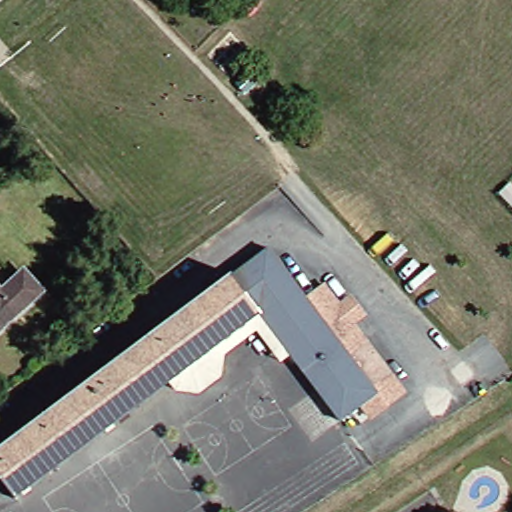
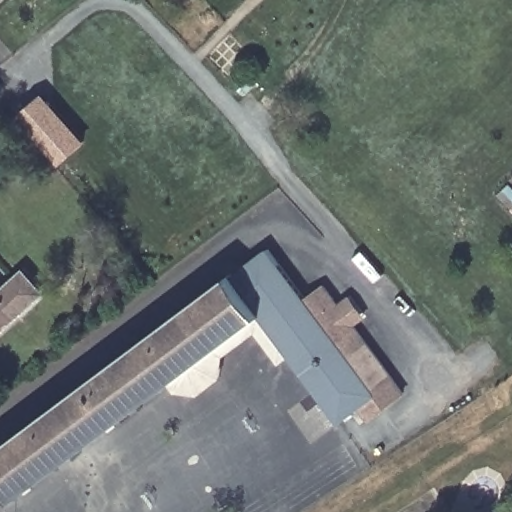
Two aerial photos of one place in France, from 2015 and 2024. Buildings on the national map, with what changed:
new [(86,140),(60,164),(17,115),(43,92),(86,140)]
unchanged [(346,423),(298,355),(268,315),(267,313),(177,381),(24,496),(0,463),(0,456),(239,275),(275,248),(312,298),(356,357),(374,345),(395,374),(410,394),(391,409),(376,419),(367,407),(346,423)]
unchanged [(0,333),(0,288),(9,298),(25,284),(32,279),(46,296),(40,301),(25,316),(22,313),(0,333)]
unchanged [(347,307),(358,299),(372,317),(361,325),(374,345),(356,357),(312,298),(331,285),(347,307)]
unchanged [(267,313),(268,315),(298,355),(289,362),(265,331),(232,356),(229,376),(207,394),(185,391),(179,382),(177,381),(267,313)]

